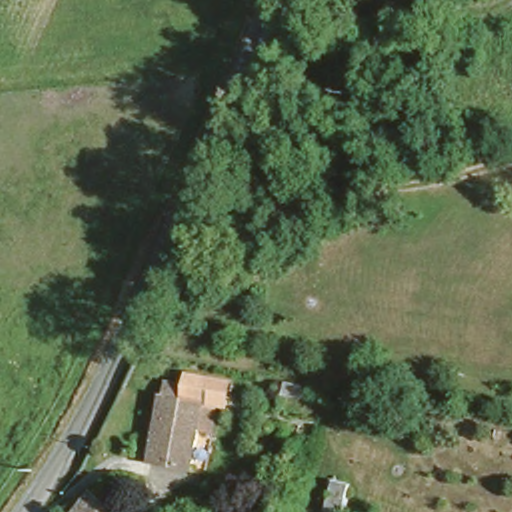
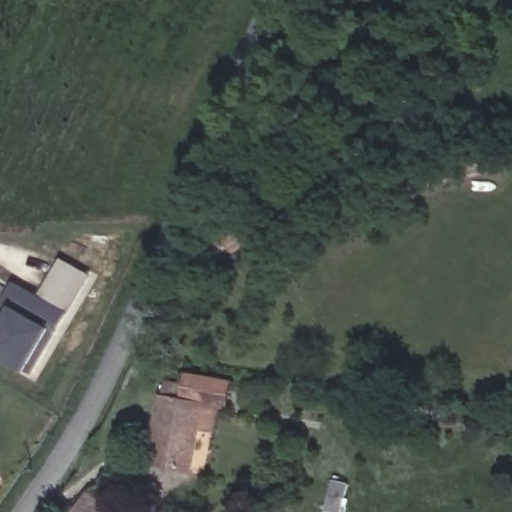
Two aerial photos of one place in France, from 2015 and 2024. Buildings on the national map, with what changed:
new [(0,315),(5,306),(0,305),(0,299),(10,281),(36,295),(58,259),(87,274),(62,314),(29,374),(0,357),(0,315)]
unchanged [(151,465),(160,398),(163,398),(164,386),(183,389),(185,380),(224,385),(221,410),(199,406),(189,471),(151,465)]
unchanged [(352,485),(344,512),(322,512),(331,478),(352,485)]
unchanged [(114,511),(114,512),(84,512),(99,497),(114,511)]

